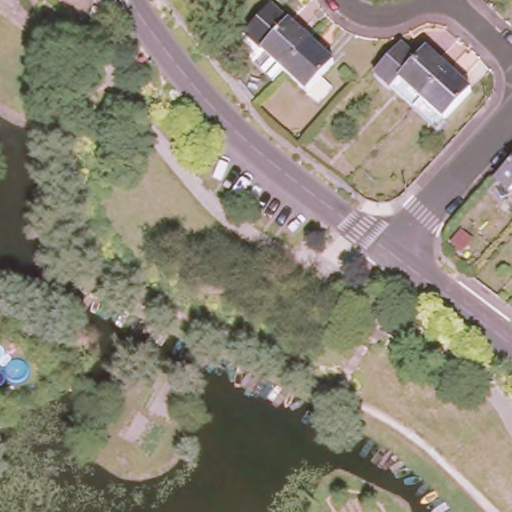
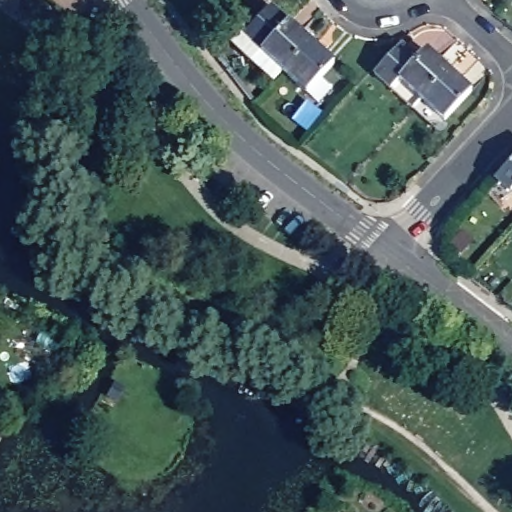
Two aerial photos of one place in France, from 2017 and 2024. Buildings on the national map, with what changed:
unchanged [(285,71),(275,83),(233,43),(244,32),(247,34),(273,4),(315,42),(287,73),(285,71)]
unchanged [(52,55),(36,42),(43,32),(60,44),(52,55)]
unchanged [(397,73),(389,82),(372,66),(399,38),(415,54),(424,44),(437,56),(437,55),(448,64),(420,94),(397,73)]
unchanged [(337,64),(324,79),(335,89),(322,105),(287,73),(315,42),(337,64)]
unchanged [(460,75),(458,76),(470,87),(434,126),(411,104),(420,94),(448,64),(460,75)]
unchanged [(508,191),(495,179),(512,159),(512,188),(508,191)]

